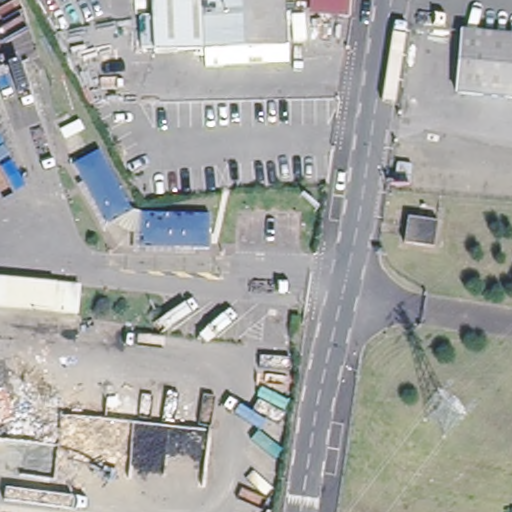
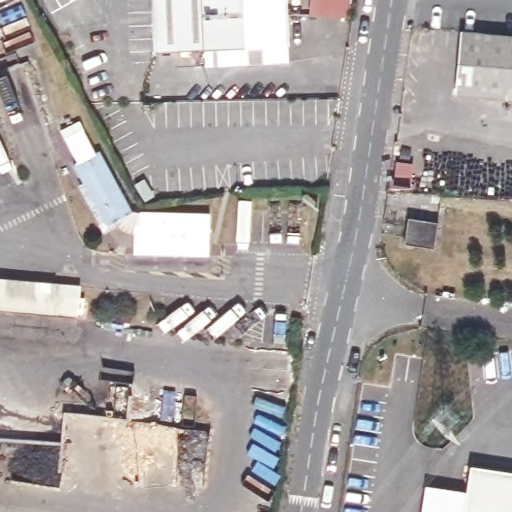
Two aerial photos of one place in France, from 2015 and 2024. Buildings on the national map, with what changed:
unchanged [(159,47),(156,0),(206,0),(208,45),(159,47)]
unchanged [(208,45),(206,0),(287,0),(289,42),(208,45)]
unchanged [(512,96),(457,91),(461,31),(512,35),(512,96)]
unchanged [(80,146),(68,154),(49,121),(61,114),(80,146)]
unchanged [(126,203),(129,210),(103,226),(94,211),(72,174),(67,165),(94,150),(104,166),(126,203)]
demolished [(143,159),(157,155),(165,186),(152,189),(143,159)]
unchanged [(135,246),(136,211),(208,212),(207,247),(135,246)]
unchanged [(407,245),(411,216),(446,221),(442,250),(407,245)]
unchanged [(77,316),(0,309),(0,275),(79,283),(77,316)]
new [(465,489),(469,463),(512,470),(512,512),(419,512),(424,483),(465,489)]

